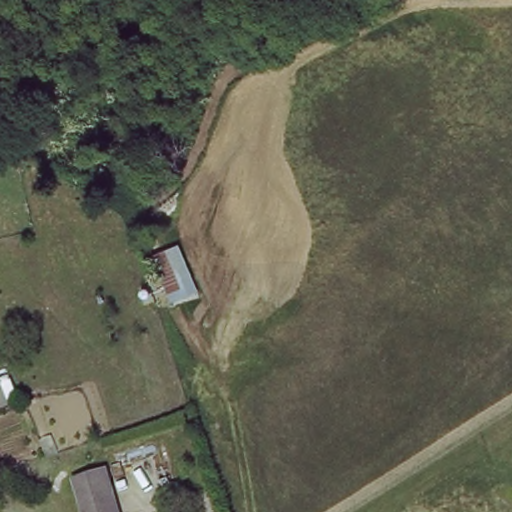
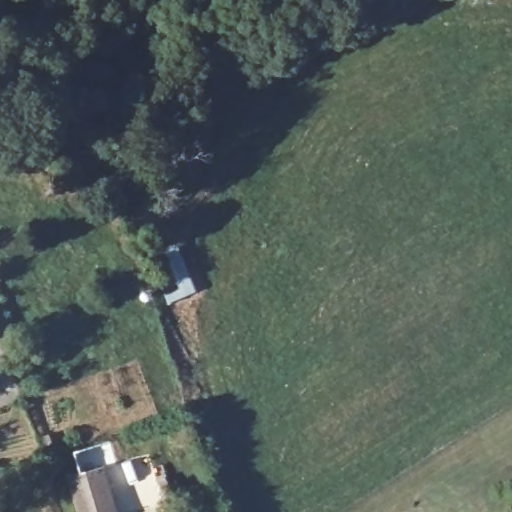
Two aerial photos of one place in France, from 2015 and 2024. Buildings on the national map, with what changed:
unchanged [(171,303),(153,255),(179,245),(198,291),(171,303)]
unchanged [(103,457),(119,506),(120,512),(84,512),(70,467),(103,457)]

